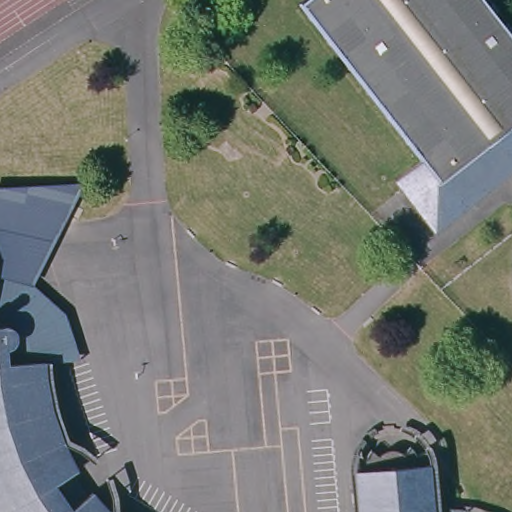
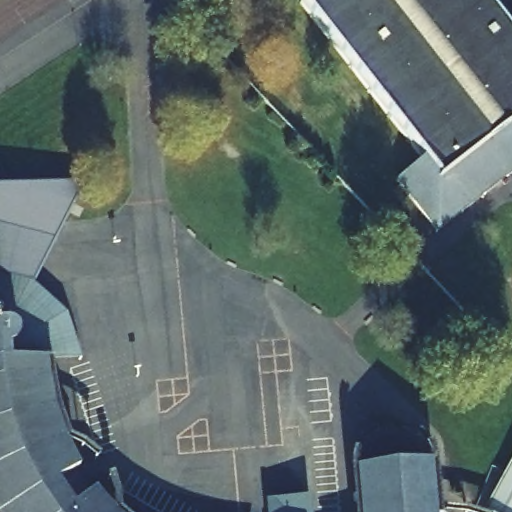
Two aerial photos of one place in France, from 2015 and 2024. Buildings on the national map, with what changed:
unchanged [(432,235),(392,182),(418,162),(300,6),(309,0),(488,0),(512,31),(512,174),(432,235)]
unchanged [(0,279),(0,182),(85,182),(29,286),(27,285),(0,279)]
unchanged [(62,315),(76,360),(41,365),(46,380),(51,410),(61,440),(75,470),(90,495),(106,512),(0,512),(0,279),(27,285),(62,315)]
new [(512,458),(512,512),(486,512),(485,511),(512,458)]
unchanged [(426,468),(430,512),(354,512),(351,473),(426,468)]

